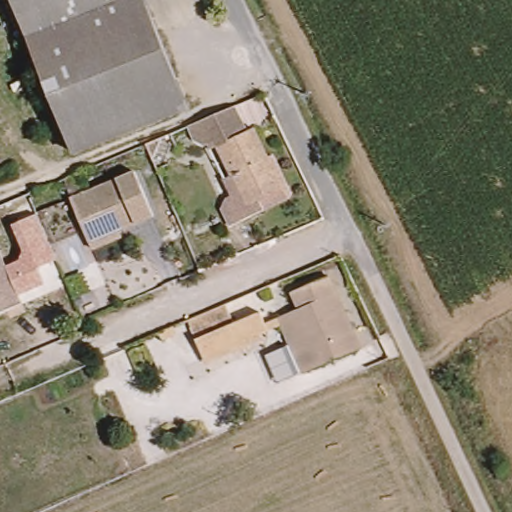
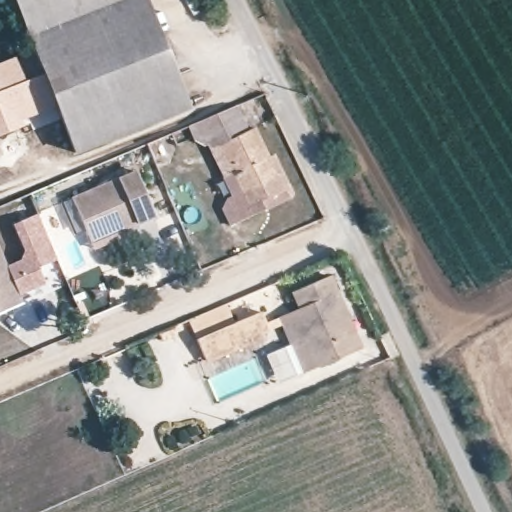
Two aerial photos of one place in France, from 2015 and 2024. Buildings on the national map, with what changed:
unchanged [(10,0),(143,0),(189,110),(75,157),(10,0)]
new [(25,79),(0,90),(0,62),(14,56),(25,79)]
new [(40,114),(23,122),(24,125),(0,135),(0,90),(25,79),(40,114)]
unchanged [(239,176),(222,138),(216,141),(209,136),(204,123),(246,106),(257,129),(262,127),(291,190),(235,217),(228,202),(241,195),(233,178),(239,176)]
unchanged [(69,202),(133,176),(151,220),(116,235),(119,241),(90,252),(85,239),(69,202)]
unchanged [(40,212),(59,257),(35,267),(16,221),(40,212)]
unchanged [(0,316),(0,251),(23,307),(0,316)]
unchanged [(297,311),(290,295),(323,278),(358,348),(312,371),(300,346),(290,350),(276,320),(286,316),(297,311)]
unchanged [(266,336),(199,364),(191,344),(183,327),(223,311),(230,328),(257,317),(266,336)]

